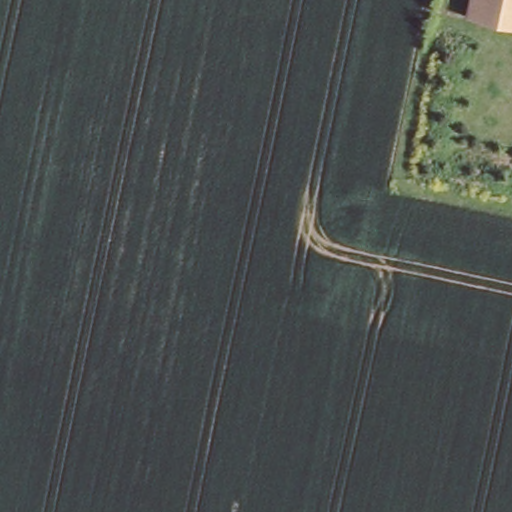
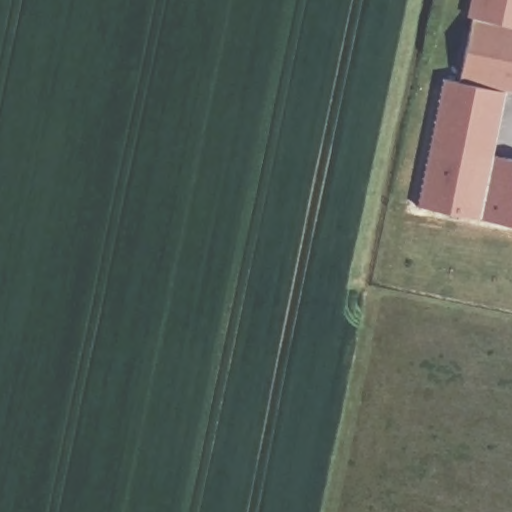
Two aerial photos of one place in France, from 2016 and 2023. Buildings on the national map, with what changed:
unchanged [(465,17),(469,0),(512,0),(512,27),(465,17)]
new [(504,92),(493,155),(512,158),(512,225),(416,206),(443,78),(459,82),(473,18),(512,27),(512,93),(504,92)]

